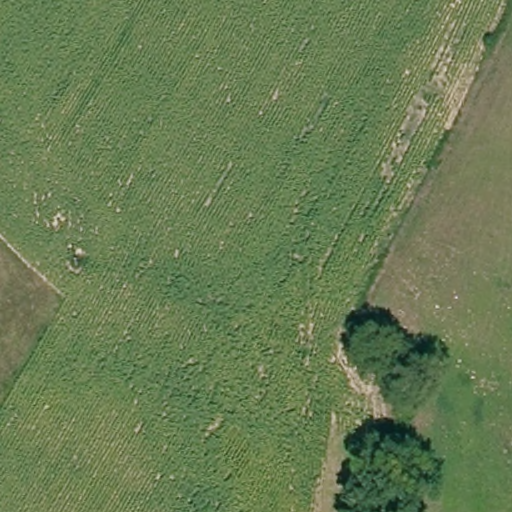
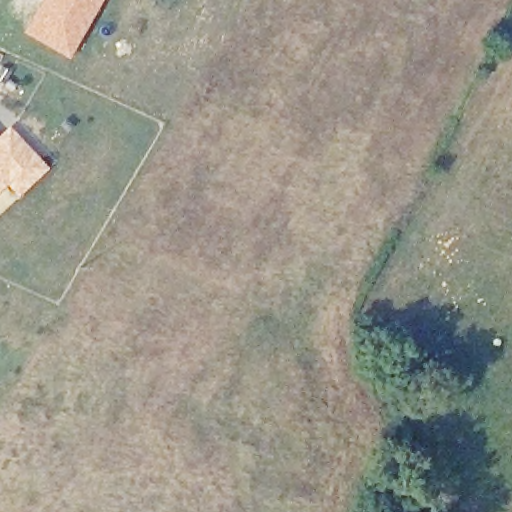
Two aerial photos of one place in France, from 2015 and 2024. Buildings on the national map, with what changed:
new [(40,0),(101,0),(68,59),(21,33),(40,0)]
new [(8,127),(47,169),(16,197),(5,186),(0,191),(0,134),(8,127)]

